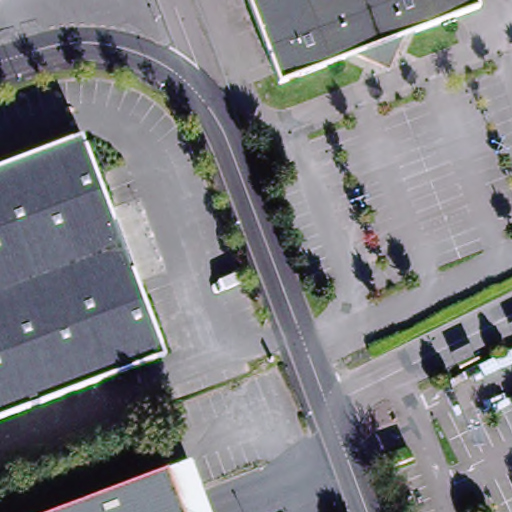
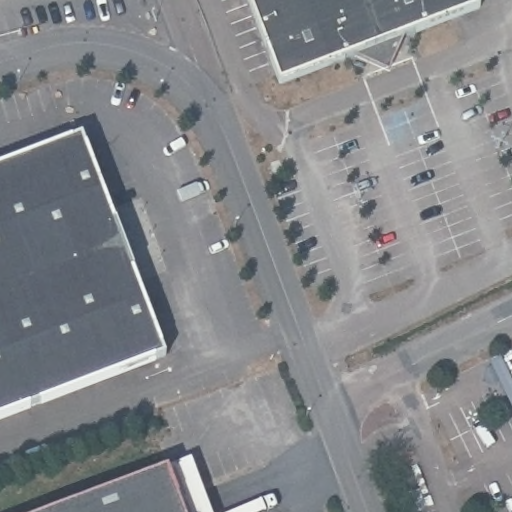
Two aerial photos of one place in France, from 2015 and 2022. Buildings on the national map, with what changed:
unchanged [(280,86),(247,0),(477,0),(481,10),(404,39),(390,73),(355,58),(280,86)]
unchanged [(166,358),(0,422),(0,169),(83,138),(166,358)]
unchanged [(184,512),(169,472),(191,463),(209,512),(184,512)]
unchanged [(184,512),(63,512),(169,472),(184,512)]

